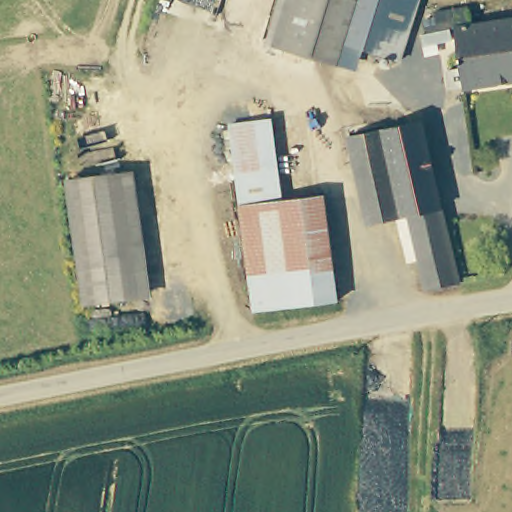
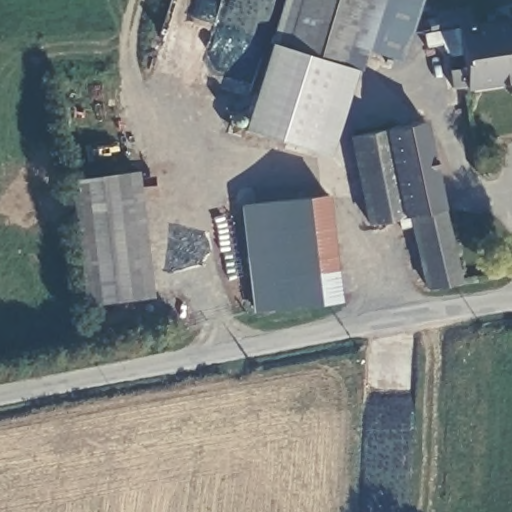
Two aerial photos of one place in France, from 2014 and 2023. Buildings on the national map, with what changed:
unchanged [(347,62),(277,41),(290,0),(368,0),(354,41),(347,62)]
unchanged [(354,41),(368,0),(427,0),(409,58),(354,41)]
unchanged [(463,80),(450,82),(447,64),(461,62),(456,22),(430,27),(425,13),(434,10),(434,7),(468,2),(471,19),(512,13),(512,75),(463,82),(463,80)]
new [(354,67),(327,155),(238,126),(266,39),(277,41),(347,62),(354,67)]
unchanged [(344,130),(417,115),(454,278),(420,284),(413,254),(403,210),(397,211),(388,168),(355,175),(344,130)]
unchanged [(403,257),(392,212),(364,217),(355,175),(388,168),(397,211),(403,210),(413,254),(403,257)]
unchanged [(138,297),(83,304),(68,179),(123,172),(138,297)]
unchanged [(253,310),(240,205),(283,200),(325,194),(338,298),(253,310)]

